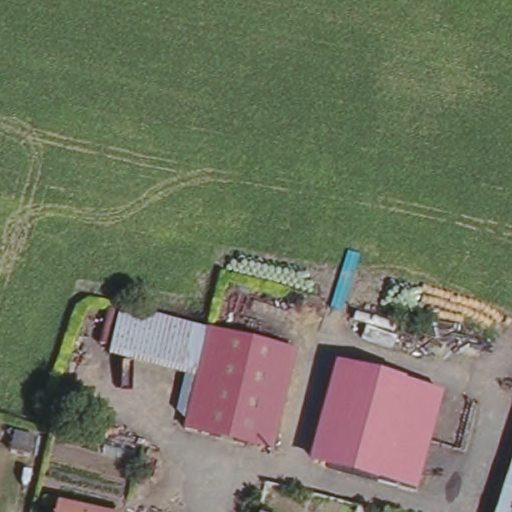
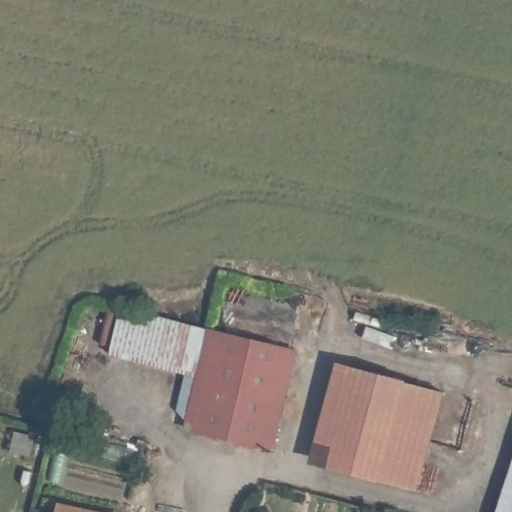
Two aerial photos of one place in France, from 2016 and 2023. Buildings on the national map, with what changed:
unchanged [(114,354),(125,306),(213,327),(201,375),(114,354)]
unchanged [(214,325),(299,347),(275,448),(188,426),(201,375),(213,327),(214,325)]
unchanged [(416,479),(315,454),(337,360),(439,385),(416,479)]
unchanged [(32,434),(27,455),(6,450),(10,430),(32,434)]
unchanged [(512,512),(498,512),(512,467),(512,512)]
unchanged [(118,512),(60,512),(63,499),(118,512)]

